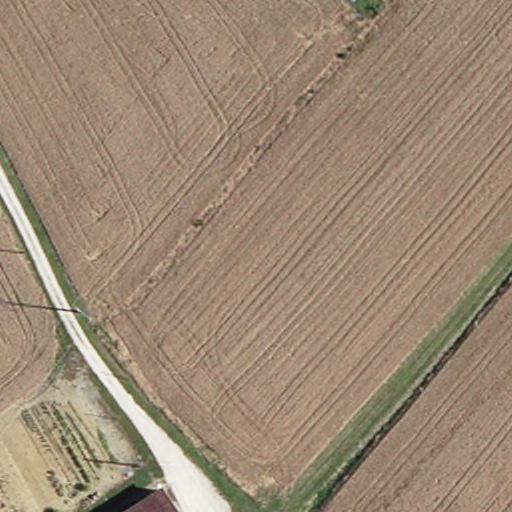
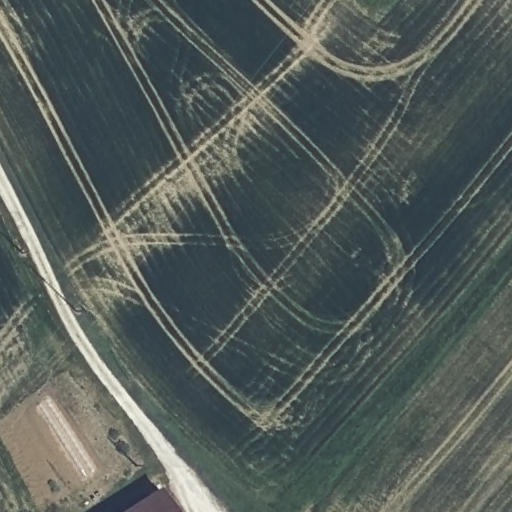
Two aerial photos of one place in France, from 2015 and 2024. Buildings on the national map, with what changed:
unchanged [(184,512),(121,512),(164,483),(184,512)]

